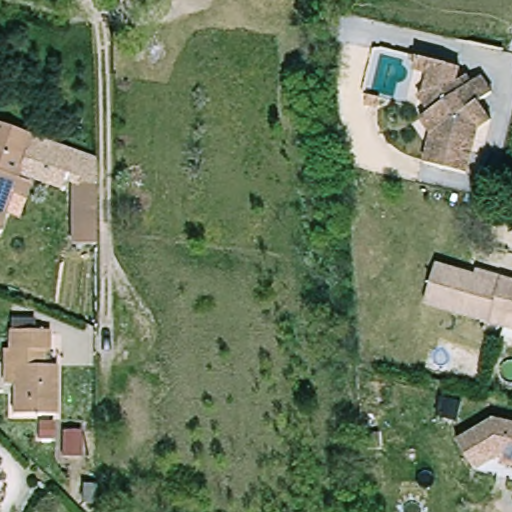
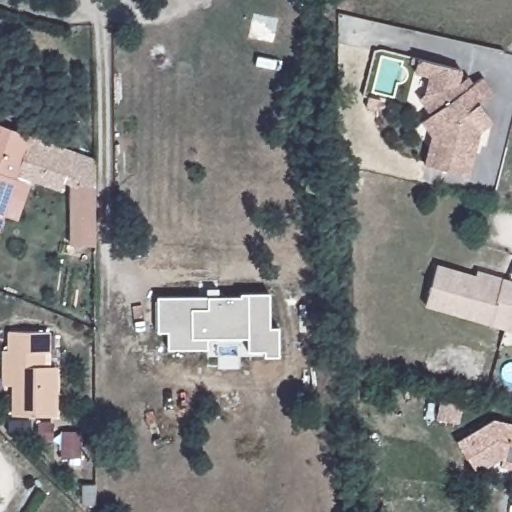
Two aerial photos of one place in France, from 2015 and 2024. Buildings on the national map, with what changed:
unchanged [(432,116),(422,100),(427,97),(430,82),(411,77),(414,65),(433,69),(456,75),(455,80),(460,77),(468,89),(483,79),(494,95),(479,105),(492,122),(478,131),(468,176),(425,167),(432,137),(422,122),(432,116)]
unchanged [(365,107),(368,96),(380,99),(378,110),(365,107)]
unchanged [(59,142),(58,146),(78,153),(70,174),(52,167),(46,184),(24,175),(3,232),(0,241),(0,121),(56,141),(59,142)]
unchanged [(74,245),(73,182),(84,182),(84,173),(98,173),(98,175),(98,182),(99,234),(99,244),(74,245)]
unchanged [(441,264),(479,275),(481,270),(506,277),(512,279),(512,329),(495,323),(429,305),(441,264)]
new [(207,291),(218,291),(218,298),(207,298),(207,291)]
new [(157,335),(156,299),(240,298),(240,295),(269,295),(269,330),(278,330),(278,360),(264,360),(263,356),(246,356),(246,340),(207,340),(207,351),(167,352),(167,334),(157,335)]
unchanged [(12,330),(54,330),(54,350),(54,365),(62,365),(61,415),(15,415),(15,385),(16,365),(5,365),(6,348),(11,348),(12,330)]
unchanged [(16,385),(15,385),(5,385),(5,365),(16,365),(16,385)]
unchanged [(503,457),(499,457),(476,472),(458,442),(494,420),(512,424),(512,466),(501,464),(503,457)]
unchanged [(61,457),(61,430),(80,430),(80,457),(61,457)]
unchanged [(95,488),(95,505),(81,505),(81,483),(95,483),(95,488)]

